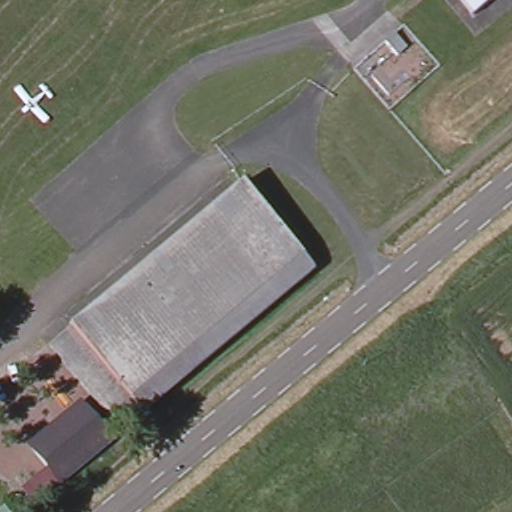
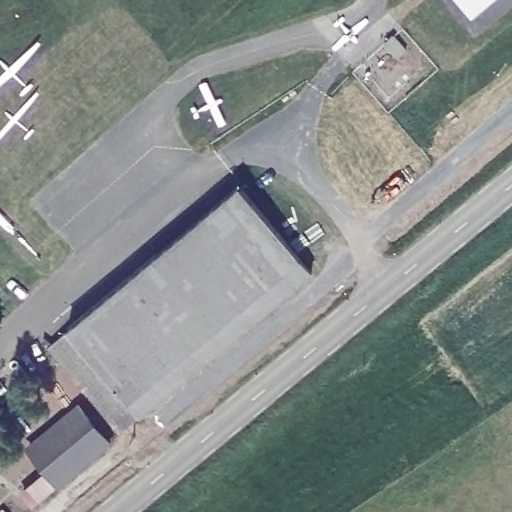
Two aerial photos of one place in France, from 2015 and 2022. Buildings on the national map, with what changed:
unchanged [(456,0),(497,0),(472,21),(456,0)]
unchanged [(381,101),(352,68),(383,42),(393,34),(405,48),(422,66),(381,101)]
unchanged [(240,190),(310,275),(141,415),(67,331),(240,190)]
unchanged [(67,331),(141,415),(119,433),(47,348),(67,331)]
unchanged [(77,401),(108,441),(59,482),(27,443),(77,401)]
unchanged [(37,476),(48,489),(33,502),(22,488),(37,476)]

